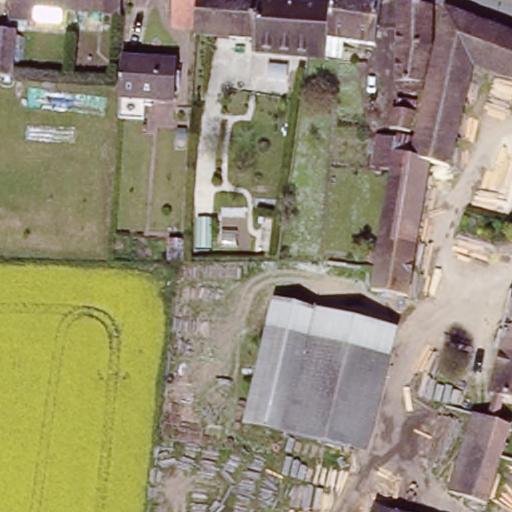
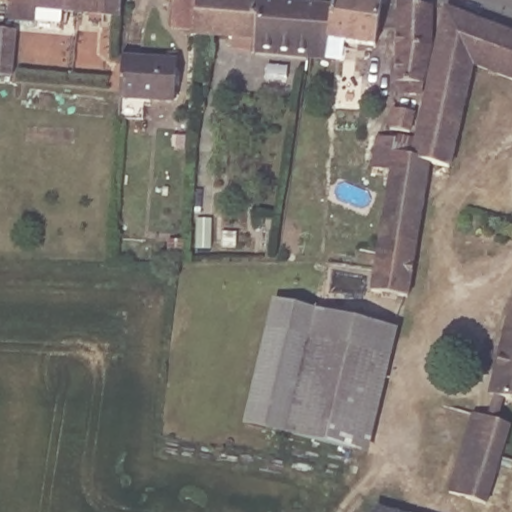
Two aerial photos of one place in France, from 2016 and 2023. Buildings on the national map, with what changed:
unchanged [(10,15),(10,2),(0,2),(0,0),(120,0),(119,11),(37,6),(36,17),(10,15)]
unchanged [(195,19),(171,18),(172,1),(173,0),(335,0),(330,49),(330,52),(312,50),(254,44),(255,31),(195,25),(194,25),(195,19)]
unchanged [(338,50),(330,49),(335,0),(384,0),(380,38),(347,34),(346,51),(338,50)]
unchanged [(402,0),(408,0),(435,5),(436,37),(425,85),(400,83),(402,0)]
unchanged [(385,168),(385,173),(380,173),(381,167),(377,166),(382,134),(401,137),(401,134),(421,137),(448,8),(512,32),(512,76),(477,63),(451,164),(435,161),(420,239),(383,232),(395,169),(385,168)]
unchanged [(18,72),(0,71),(0,26),(21,27),(18,72)]
unchanged [(130,63),(165,65),(165,61),(181,62),(179,101),(128,99),(130,63)]
unchanged [(398,102),(418,106),(413,130),(393,126),(398,102)]
unchanged [(377,269),(383,232),(420,239),(410,292),(373,287),(377,269)]
unchanged [(52,247),(62,249),(61,256),(51,255),(52,247)]
unchanged [(397,327),(370,451),(245,423),(272,298),(397,327)]
unchanged [(505,346),(510,347),(512,342),(512,396),(493,390),(505,346)]
unchanged [(509,433),(485,512),(472,512),(446,504),(470,422),(509,433)]
unchanged [(387,512),(370,512),(371,508),(387,512)]

